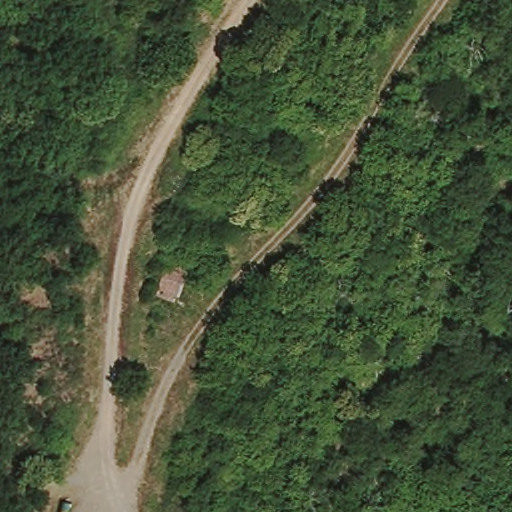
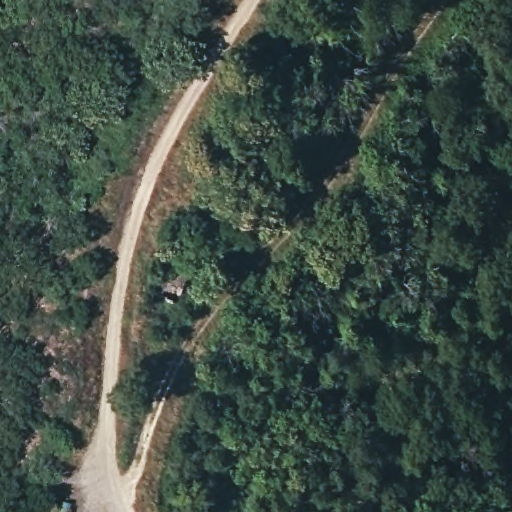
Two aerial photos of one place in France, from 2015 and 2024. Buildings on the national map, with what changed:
unchanged [(155,292),(169,256),(190,264),(181,306),(155,292)]

